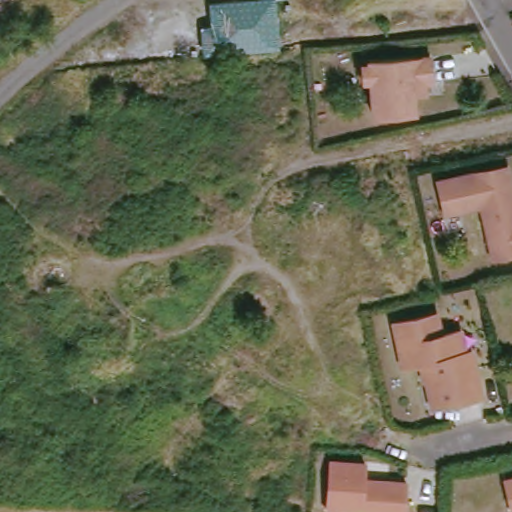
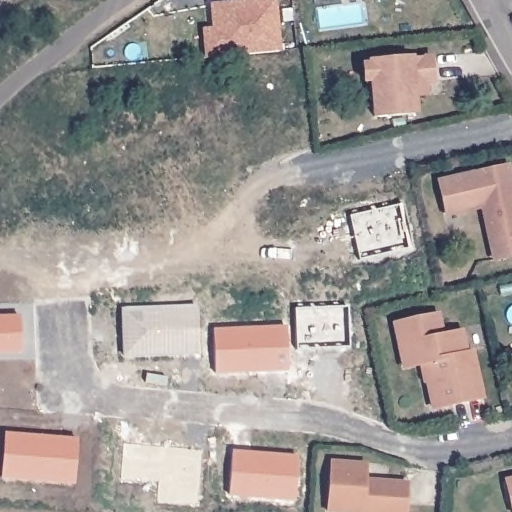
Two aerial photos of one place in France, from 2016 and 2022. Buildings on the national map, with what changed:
new [(281,51),(205,58),(202,29),(212,28),(210,5),(255,0),(275,0),(281,51)]
unchanged [(412,93),(414,110),(372,114),(369,78),(360,78),(359,64),(367,63),(367,59),(429,52),(432,79),(425,80),(426,93),(412,93)]
unchanged [(504,163),(510,184),(505,185),(507,194),(511,194),(512,198),(512,252),(495,256),(480,203),(460,209),(445,212),(444,204),(437,179),(504,163)]
new [(201,357),(123,360),(123,307),(201,305),(201,357)]
new [(0,352),(0,315),(20,314),(22,352),(0,352)]
unchanged [(472,398),(426,409),(415,365),(395,369),(385,325),(427,315),(432,335),(451,331),(456,352),(462,351),(472,398)]
new [(289,374),(214,373),(212,325),(287,327),(289,374)]
new [(75,487),(2,481),(5,429),(80,437),(75,487)]
new [(298,503),(229,497),(232,447),(300,455),(298,503)]
unchanged [(366,482),(408,484),(406,512),(329,512),(332,463),(367,466),(366,482)]
unchanged [(509,512),(502,483),(512,480),(512,512),(509,512)]

